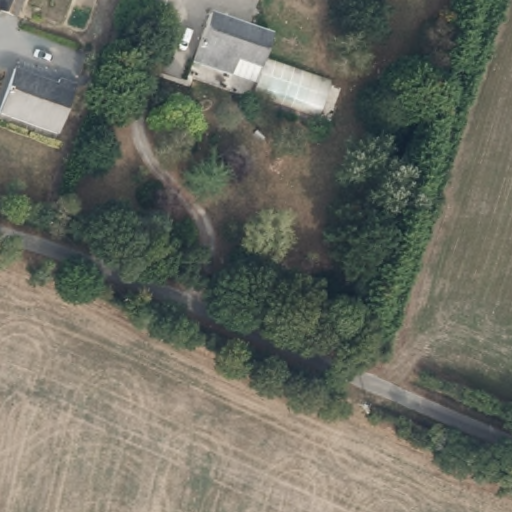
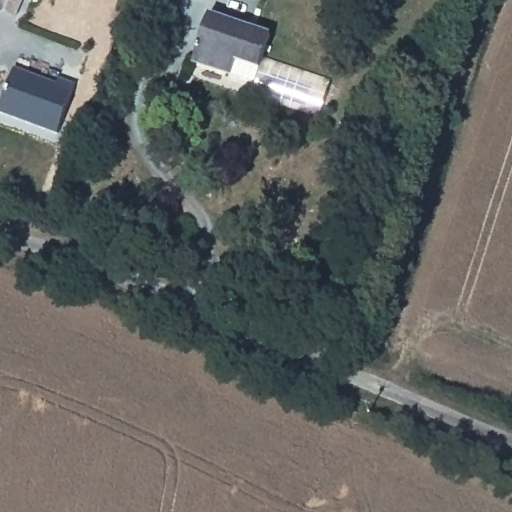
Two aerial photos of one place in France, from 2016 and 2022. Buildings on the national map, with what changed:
unchanged [(7,15),(0,12),(0,0),(15,0),(7,15)]
unchanged [(258,69),(235,61),(230,74),(190,60),(208,13),(270,36),(258,69)]
unchanged [(53,134),(0,112),(0,98),(12,68),(52,84),(55,79),(75,85),(53,134)]

